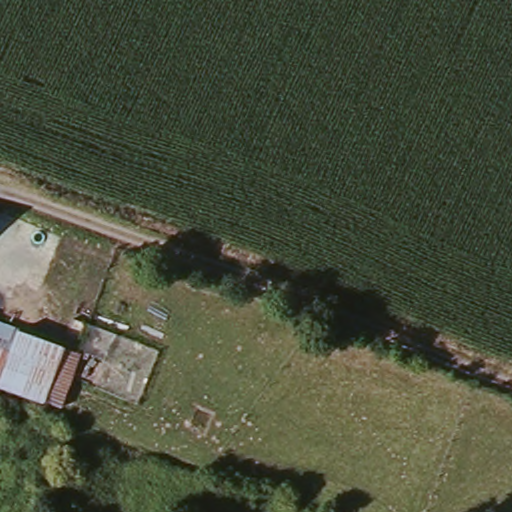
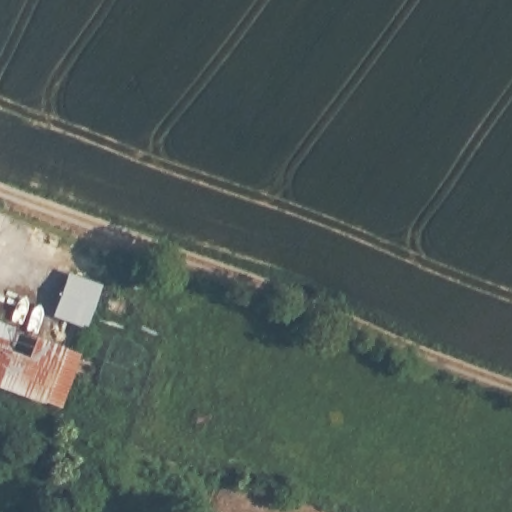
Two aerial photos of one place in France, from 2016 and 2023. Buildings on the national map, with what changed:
new [(102,289),(88,331),(52,319),(68,276),(102,289)]
unchanged [(0,390),(0,323),(17,330),(76,355),(57,408),(0,390)]

